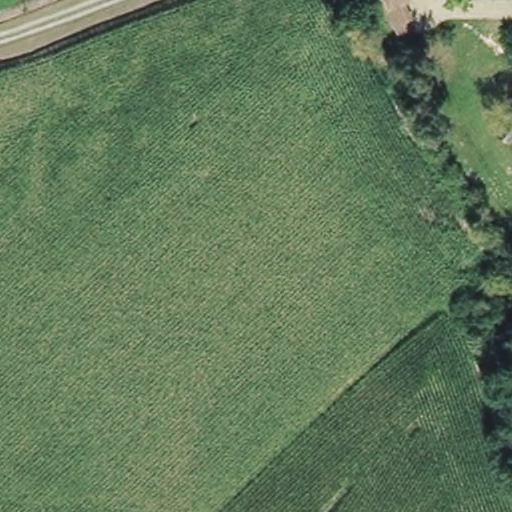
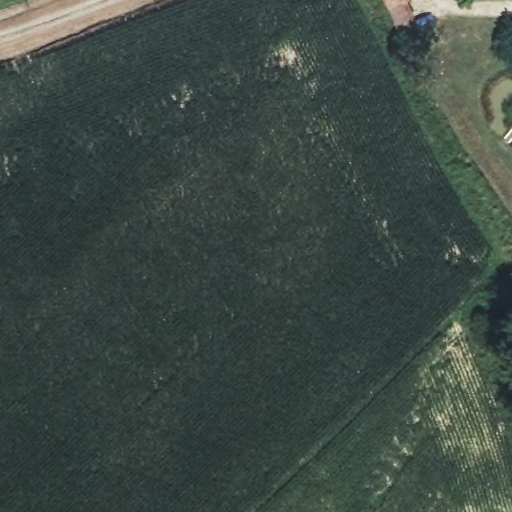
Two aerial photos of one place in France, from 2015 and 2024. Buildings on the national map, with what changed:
unchanged [(399,34),(383,0),(411,0),(411,1),(407,2),(414,18),(408,21),(413,30),(399,34)]

